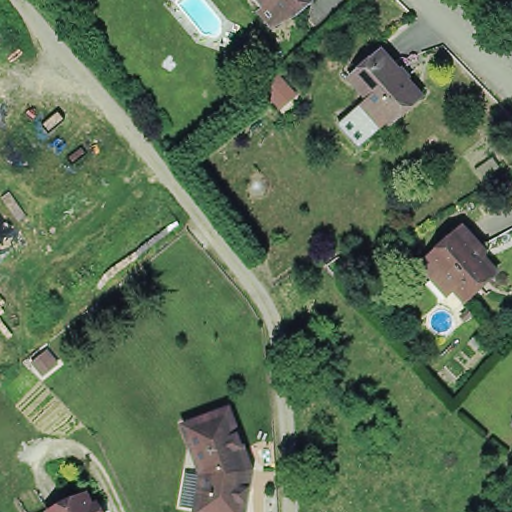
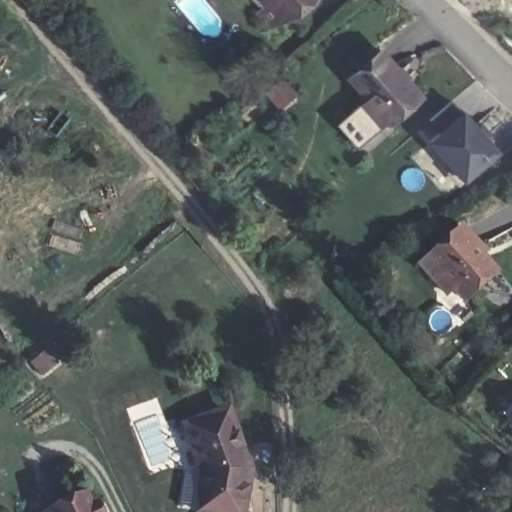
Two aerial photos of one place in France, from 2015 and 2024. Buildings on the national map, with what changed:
unchanged [(279,25),(263,7),(270,0),(307,0),(279,25)]
unchanged [(366,107),(377,97),(364,82),(393,54),(428,92),(399,120),(388,130),(366,107)]
new [(465,181),(428,140),(441,129),(431,120),(453,100),(462,109),(501,150),(465,181)]
unchanged [(424,257),(431,252),(434,249),(438,245),(463,224),(468,220),(488,243),(484,247),(499,266),(487,278),(468,295),(457,283),(451,288),(429,263),(424,257)]
unchanged [(202,469),(186,419),(228,405),(248,463),(246,480),(242,512),(237,512),(198,507),(182,505),(186,467),(202,469)]
unchanged [(95,489),(103,501),(108,499),(115,512),(59,512),(58,508),(83,495),(95,489)]
unchanged [(59,512),(50,512),(58,508),(59,512)]

